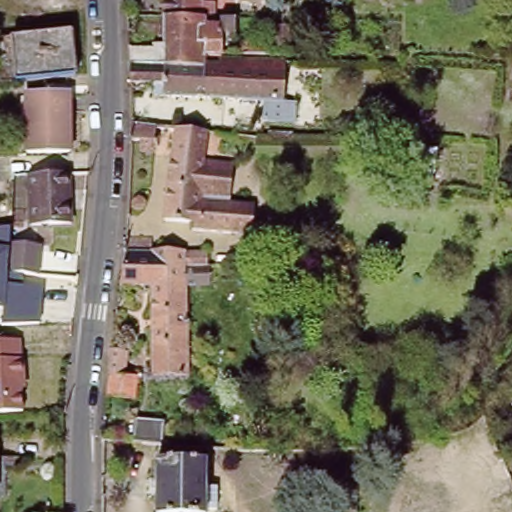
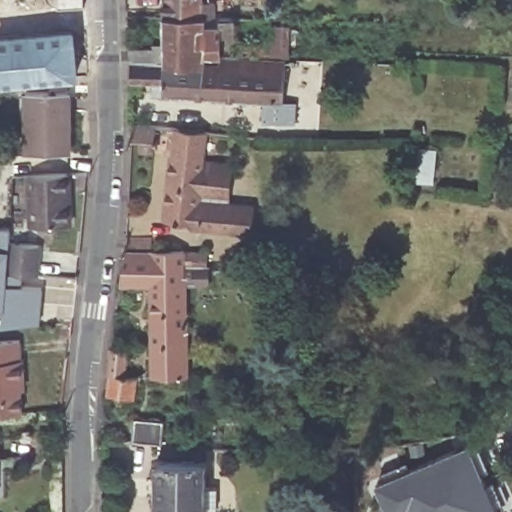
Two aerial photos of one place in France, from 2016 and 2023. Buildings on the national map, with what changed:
unchanged [(162,0),(203,0),(202,14),(162,13),(162,0)]
unchanged [(199,51),(198,62),(162,60),(162,59),(130,58),(129,45),(151,45),(151,41),(161,40),(162,13),(202,14),(235,15),(233,36),(272,38),(273,20),(290,21),(288,50),(220,47),(220,51),(199,51)]
unchanged [(12,38),(87,33),(88,75),(13,80),(12,38)]
unchanged [(220,55),(295,58),(292,120),(261,117),(262,98),(152,91),(152,81),(130,80),(130,58),(162,59),(162,60),(198,62),(199,51),(220,51),(220,55)]
unchanged [(25,96),(67,95),(69,156),(27,157),(25,96)]
unchanged [(152,154),(139,153),(139,143),(131,142),(131,125),(131,117),(144,116),(144,126),(155,128),(152,154)]
unchanged [(220,129),(219,145),(207,145),(205,158),(237,161),(233,200),(258,203),(256,232),(196,226),(196,220),(167,216),(173,152),(175,152),(178,124),(220,129)]
unchanged [(71,176),(68,226),(27,225),(30,176),(71,176)]
unchanged [(0,310),(0,228),(9,228),(8,241),(43,244),(40,273),(24,272),(22,285),(46,286),(42,324),(3,327),(2,310),(0,310)]
unchanged [(187,287),(187,377),(152,377),(152,288),(132,288),(129,300),(118,300),(126,253),(127,240),(167,241),(167,254),(184,255),(207,256),(207,258),(229,259),(231,267),(208,266),(209,270),(210,288),(187,287)]
unchanged [(24,411),(0,412),(0,341),(21,339),(24,411)]
unchanged [(114,378),(112,377),(114,350),(130,355),(128,377),(142,377),(139,400),(112,397),(114,378)]
unchanged [(137,414),(166,417),(164,439),(135,437),(137,414)]
new [(468,444),(499,512),(385,512),(374,487),(468,444)]
unchanged [(208,512),(158,512),(158,459),(209,460),(208,512)]

